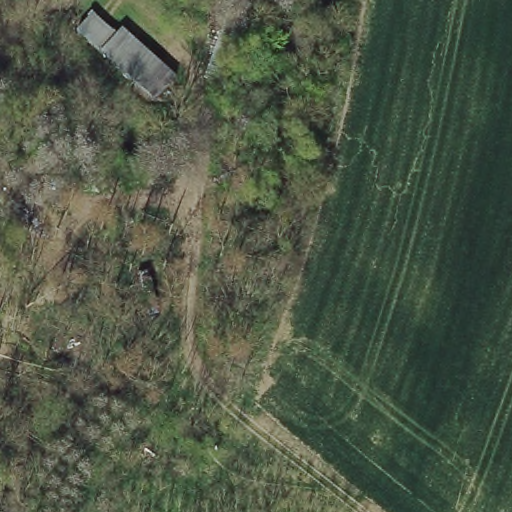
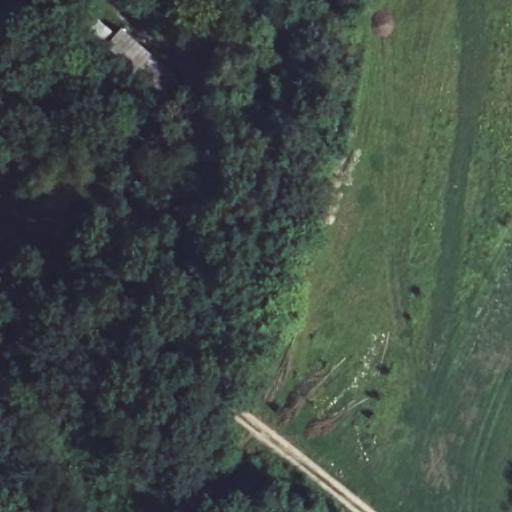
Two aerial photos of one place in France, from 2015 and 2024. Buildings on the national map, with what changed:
unchanged [(123,35),(128,30),(181,77),(158,104),(78,34),(98,12),(123,35)]
unchanged [(246,25),(225,81),(211,75),(228,20),(246,25)]

